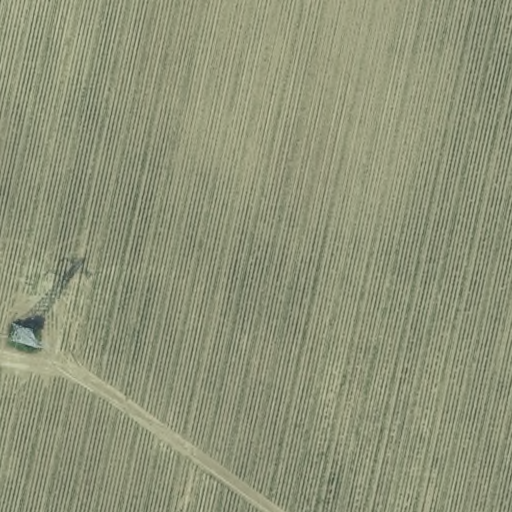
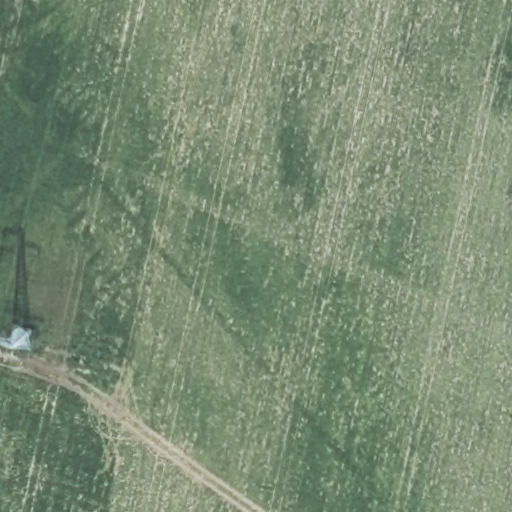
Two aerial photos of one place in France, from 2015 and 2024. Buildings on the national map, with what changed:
[]

